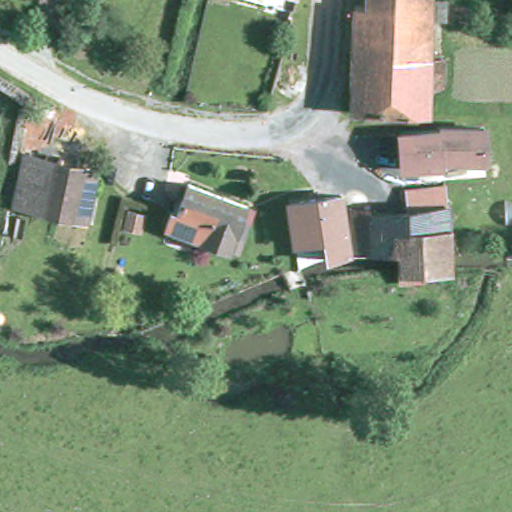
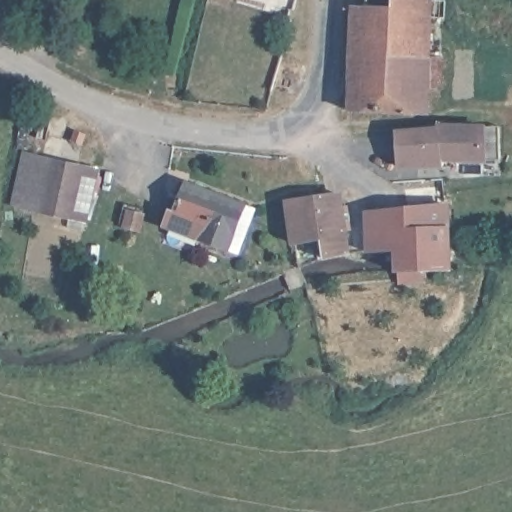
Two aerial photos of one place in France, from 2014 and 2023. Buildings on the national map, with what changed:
unchanged [(442,18),(427,17),(425,56),(440,57),(438,81),(423,81),(422,111),(347,110),(352,7),(360,6),(361,0),(443,0),(442,18)]
unchanged [(480,159),(477,159),(439,156),(440,163),(397,165),(395,133),(395,131),(435,128),(435,125),(439,125),(440,125),(480,125),(480,159)]
unchanged [(85,223),(71,219),(31,210),(42,161),(82,171),(97,174),(85,223)]
unchanged [(156,224),(162,208),(167,210),(167,207),(178,180),(237,203),(245,206),(243,213),(240,222),(228,252),(156,224)]
unchanged [(345,205),(351,205),(351,203),(350,196),(363,196),(363,185),(393,184),(412,182),(412,184),(442,182),(442,191),(444,248),(441,265),(441,269),(440,269),(438,269),(403,272),(392,273),(393,263),(393,249),(365,250),(346,251),(345,205)]
unchanged [(343,251),(320,258),(317,237),(290,241),(284,200),(335,193),(343,251)]

